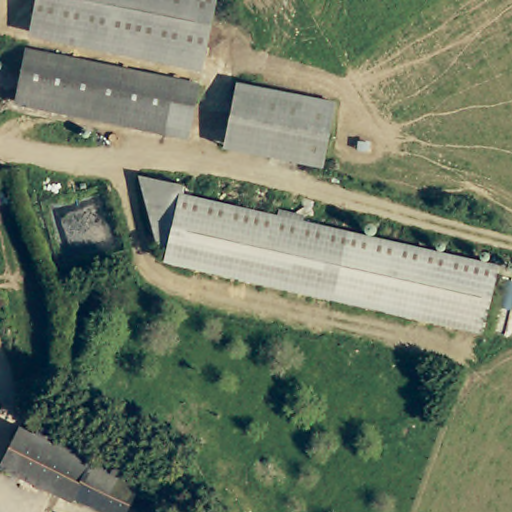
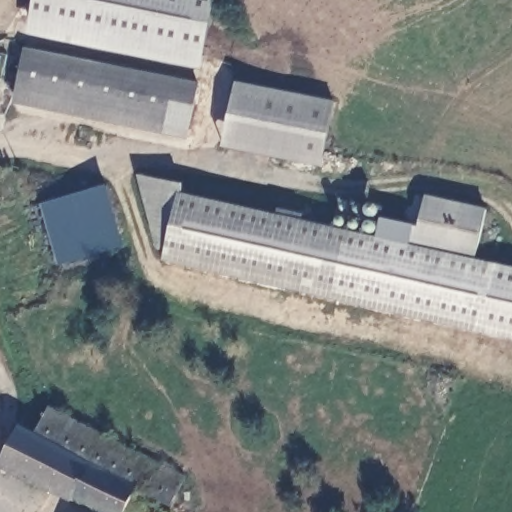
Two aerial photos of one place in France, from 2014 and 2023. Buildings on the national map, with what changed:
unchanged [(36,0),(215,0),(204,57),(32,22),(36,0)]
unchanged [(190,130),(17,96),(26,50),(199,85),(190,130)]
unchanged [(235,83),(335,102),(323,165),(224,147),(235,83)]
unchanged [(165,261),(167,251),(161,250),(144,192),(148,178),(183,186),(180,195),(278,216),(280,210),(305,217),(303,222),(310,224),(498,265),(483,331),(165,261)]
new [(56,265),(38,203),(105,184),(125,247),(56,265)]
new [(382,219),(419,226),(427,194),(486,208),(475,260),(376,238),(382,219)]
new [(512,268),(512,337),(483,331),(498,265),(512,268)]
demolished [(512,279),(512,307),(512,308),(496,305),(503,277),(512,279)]
unchanged [(3,403),(0,409),(0,401),(3,403)]
unchanged [(50,403),(188,473),(174,502),(138,485),(125,512),(116,512),(76,493),(73,499),(0,465),(0,464),(19,423),(35,432),(50,403)]

